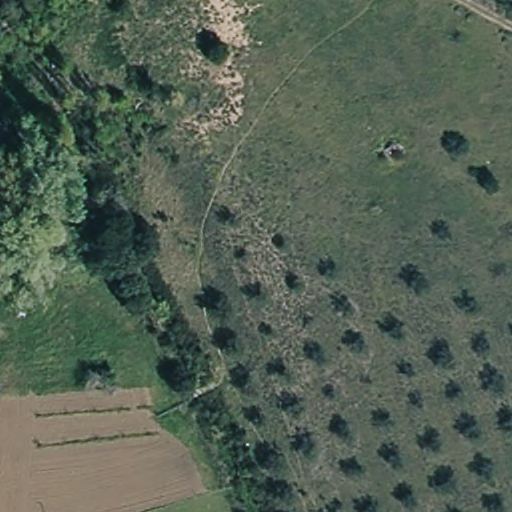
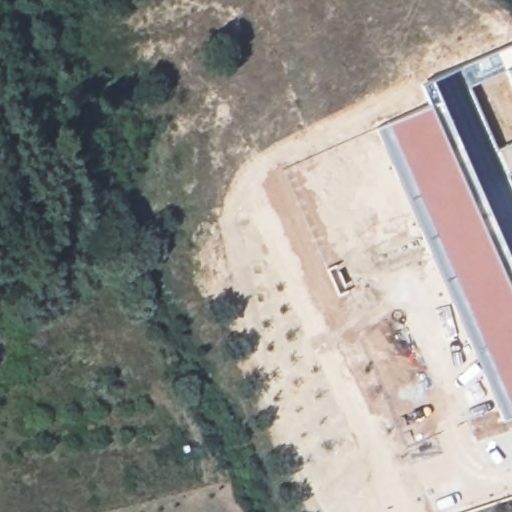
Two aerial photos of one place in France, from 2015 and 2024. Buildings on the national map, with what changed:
new [(420,83),(512,44),(512,86),(505,70),(467,86),(496,148),(512,141),(512,173),(508,175),(512,186),(512,417),(503,420),(376,128),(429,106),(420,83)]

